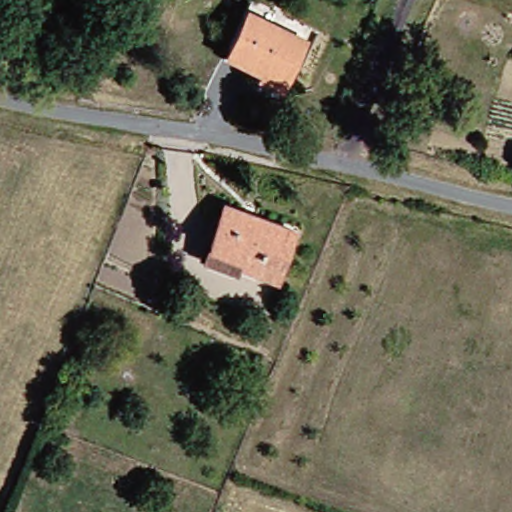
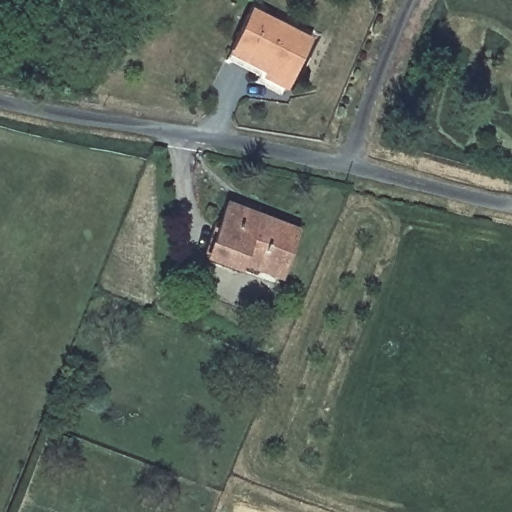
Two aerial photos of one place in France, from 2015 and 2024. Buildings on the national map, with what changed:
unchanged [(308,40),(286,87),(265,77),(269,70),(232,51),(250,11),(308,40)]
unchanged [(210,259),(218,240),(232,204),(301,232),(283,276),(247,261),(242,272),(210,259)]

